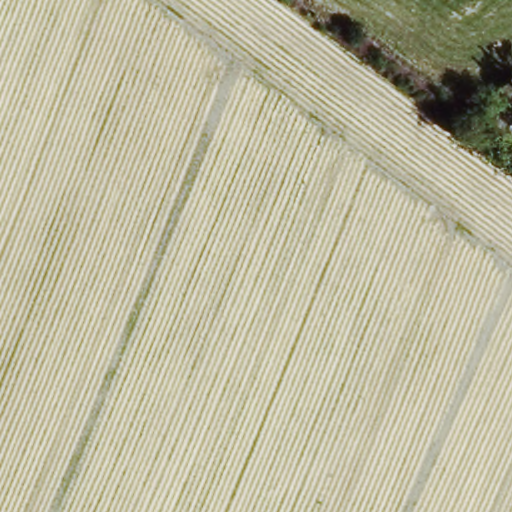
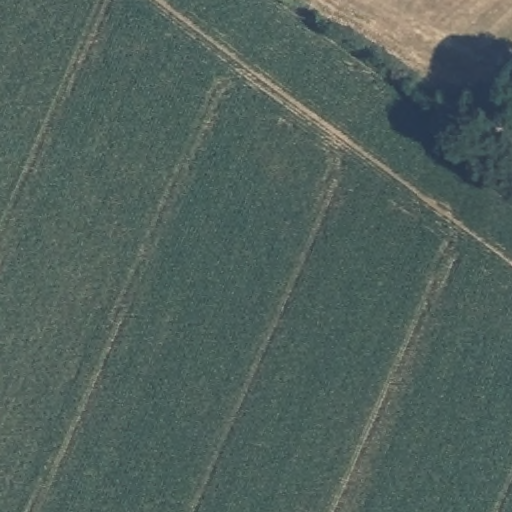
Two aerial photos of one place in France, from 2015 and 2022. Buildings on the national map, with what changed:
[]

